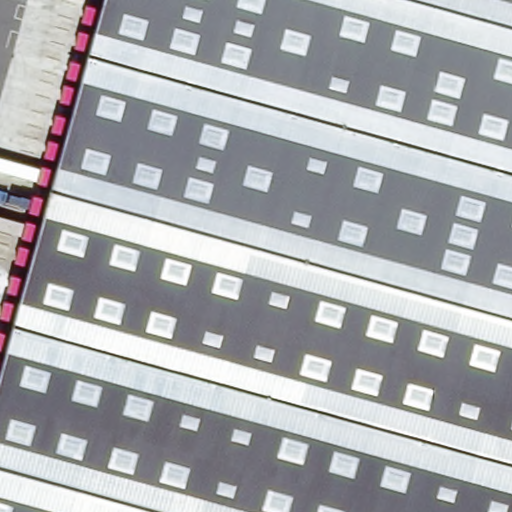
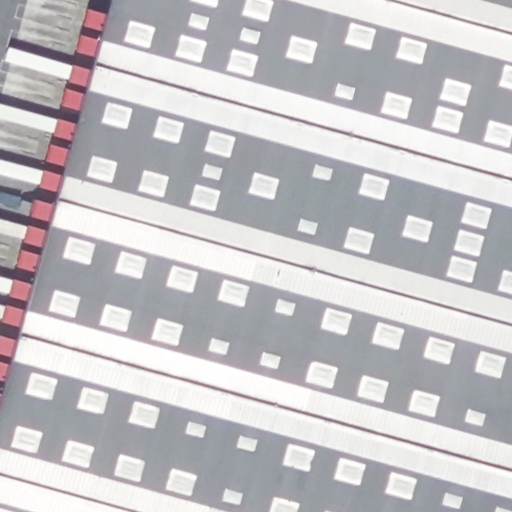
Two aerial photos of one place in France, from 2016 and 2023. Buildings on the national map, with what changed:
unchanged [(108,0),(512,0),(512,512),(0,512),(0,388),(108,0)]

